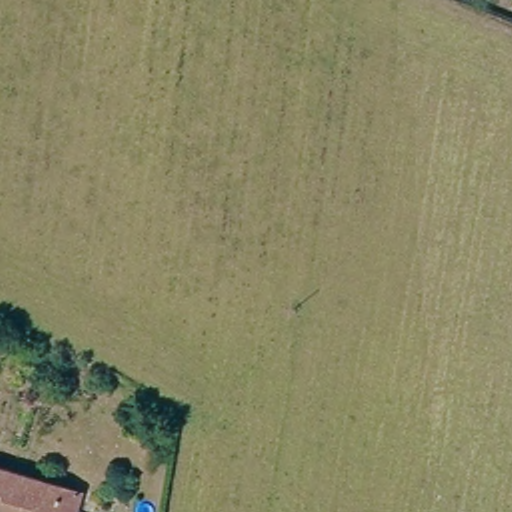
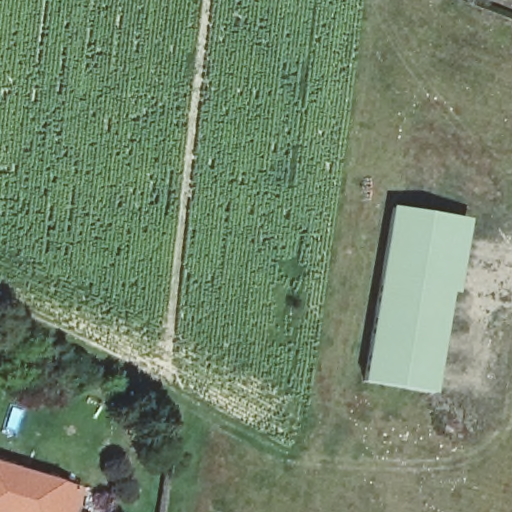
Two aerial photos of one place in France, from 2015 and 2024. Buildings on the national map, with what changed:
new [(391,196),(461,207),(450,276),(380,266),(391,196)]
new [(380,266),(450,276),(434,382),(364,371),(380,266)]
unchanged [(60,487),(84,495),(79,512),(0,512),(0,467),(60,487)]

